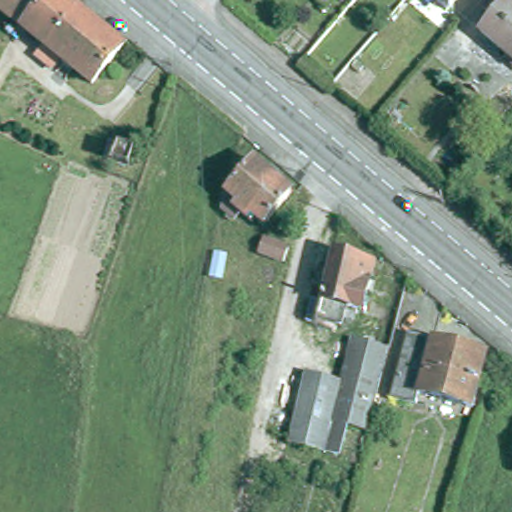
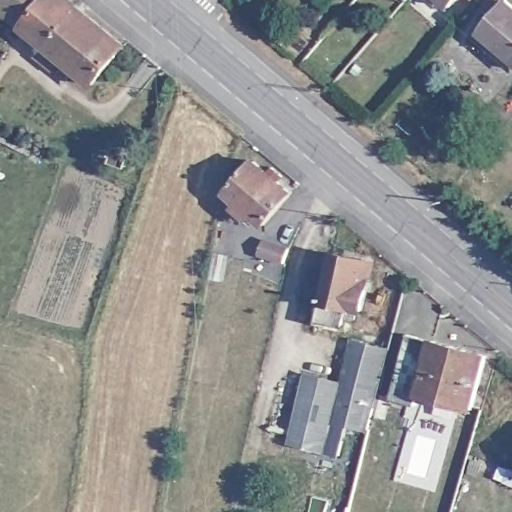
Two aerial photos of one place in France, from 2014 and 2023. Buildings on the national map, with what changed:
unchanged [(127,45),(95,84),(0,6),(0,0),(72,0),(127,45)]
unchanged [(450,2),(448,0),(469,0),(456,15),(446,6),(450,2)]
unchanged [(508,29),(495,44),(491,40),(487,44),(477,36),(494,15),(486,8),(493,0),(507,0),(512,4),(512,31),(508,29)]
unchanged [(482,0),(481,1),(480,0),(482,0)]
unchanged [(512,31),(512,58),(495,44),(508,29),(512,31)]
unchanged [(511,65),(512,64),(512,66),(511,65)]
unchanged [(258,156),(293,187),(266,220),(253,210),(250,214),(242,207),(236,214),(223,204),(227,190),(258,156)]
unchanged [(266,240),(286,248),(277,275),(256,266),(266,240)]
unchanged [(332,291),(342,250),(379,258),(368,303),(352,300),(348,318),(345,320),(323,315),(325,306),(328,290),(332,291)]
unchanged [(426,389),(422,400),(396,393),(413,328),(491,350),(478,403),(426,389)]
unchanged [(336,383),(348,337),(383,347),(363,428),(328,420),(321,450),(285,440),(300,373),(336,383)]

